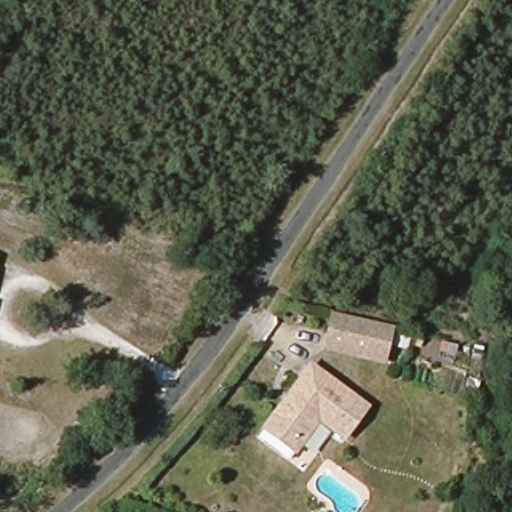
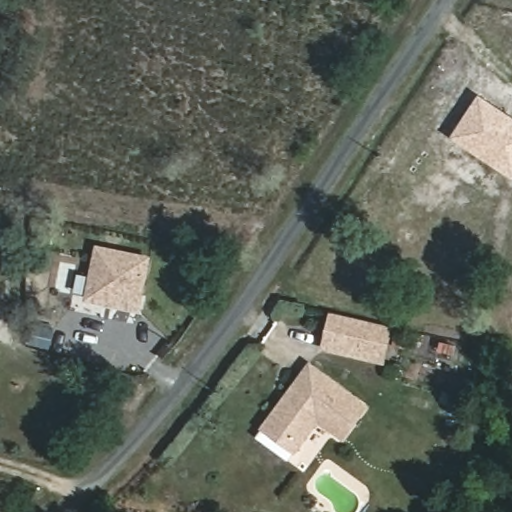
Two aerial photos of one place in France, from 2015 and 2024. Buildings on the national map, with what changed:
new [(480,96),(512,117),(512,179),(451,139),(480,96)]
new [(150,256),(141,314),(86,303),(95,246),(150,256)]
unchanged [(362,355),(322,346),(329,313),(369,322),(389,326),(381,359),(362,355)]
unchanged [(263,433),(270,422),(306,369),(363,407),(346,432),(322,416),(303,444),(296,454),(263,433)]

